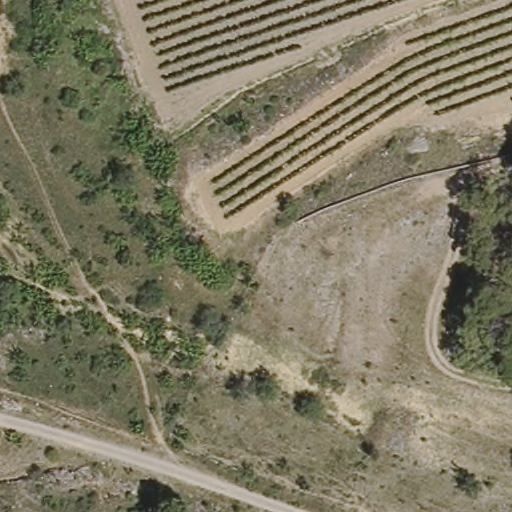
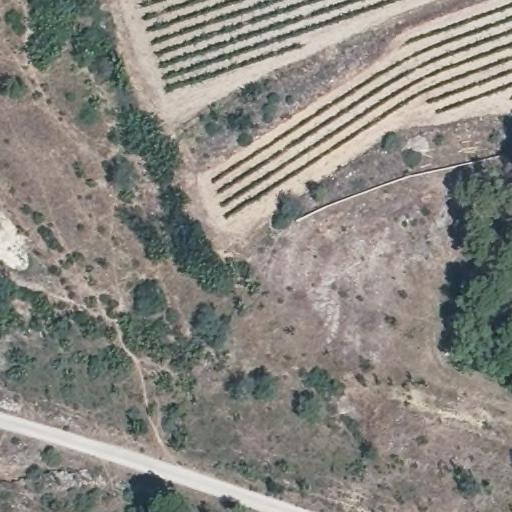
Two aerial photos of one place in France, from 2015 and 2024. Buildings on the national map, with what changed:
[]

